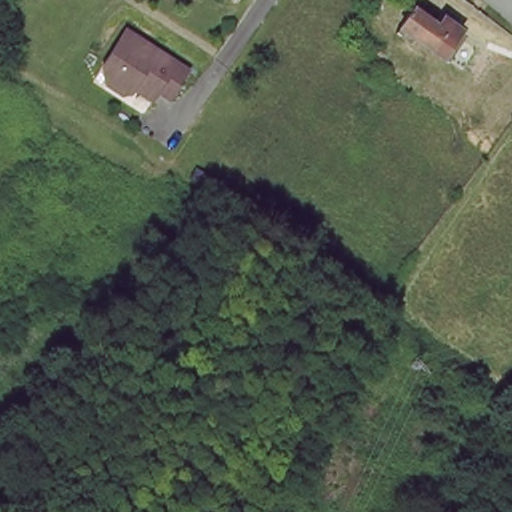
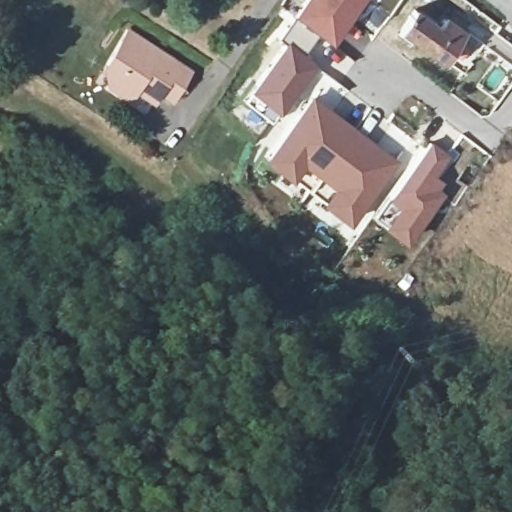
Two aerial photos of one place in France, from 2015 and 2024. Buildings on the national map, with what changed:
new [(252,91),(248,89),(285,42),(280,38),(299,17),(293,14),(303,0),(364,0),(331,41),(319,32),(303,52),(316,64),(278,110),(271,121),(243,100),(252,91)]
unchanged [(392,29),(406,10),(429,26),(436,17),(454,31),(433,59),(392,29)]
unchanged [(191,77),(172,105),(160,96),(156,101),(139,88),(134,95),(124,96),(110,86),(108,76),(113,70),(108,66),(131,34),(191,77)]
demolished [(443,61),(457,41),(469,50),(455,71),(443,61)]
new [(311,94),(398,160),(349,224),(263,157),(311,94)]
new [(398,205),(387,195),(429,138),(449,153),(434,172),(444,180),(439,187),(444,191),(407,242),(383,225),(398,205)]
unchanged [(497,428),(486,422),(492,410),(503,415),(497,428)]

